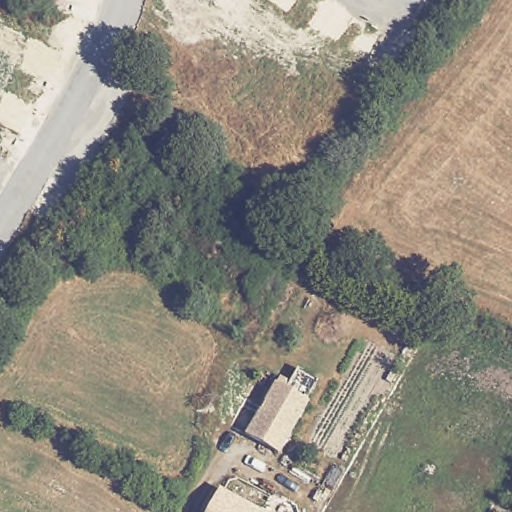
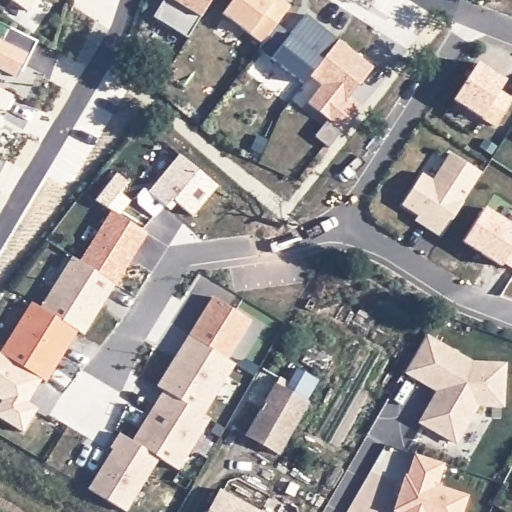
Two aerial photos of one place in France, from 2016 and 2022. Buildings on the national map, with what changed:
new [(28,11),(11,0),(35,0),(28,11)]
new [(188,38),(171,28),(165,40),(146,30),(164,0),(211,0),(188,38)]
new [(231,0),(282,0),(290,6),(277,25),(292,34),(306,14),(339,40),(311,77),(306,83),(259,47),(262,43),(222,13),(231,0)]
new [(28,59),(24,57),(14,77),(12,76),(13,75),(0,68),(0,23),(37,42),(28,59)]
unchanged [(361,106),(341,130),(309,105),(323,86),(311,77),(339,40),(374,68),(350,98),(361,106)]
new [(495,127),(482,118),(454,100),(478,64),(506,82),(499,92),(512,100),(495,127)]
new [(5,112),(0,109),(0,89),(14,97),(5,112)]
new [(423,172),(433,177),(450,151),(482,171),(440,238),(414,222),(418,215),(402,205),(423,172)]
new [(180,155),(217,187),(193,216),(173,199),(166,207),(149,192),(180,155)]
new [(73,257),(80,261),(110,209),(148,232),(84,335),(78,331),(48,314),(41,310),(73,257)]
new [(512,226),(512,249),(501,267),(464,242),(485,209),(512,226)]
new [(504,263),(512,249),(512,269),(504,263)]
new [(213,298),(251,321),(227,360),(189,336),(213,298)]
new [(32,302),(41,310),(78,331),(48,383),(41,380),(0,354),(32,302)]
new [(158,387),(176,358),(179,352),(189,336),(235,365),(204,416),(158,387)]
unchanged [(457,446),(416,423),(435,393),(404,375),(428,337),(474,361),(508,363),(506,409),(477,408),(457,446)]
new [(41,380),(28,401),(38,407),(24,433),(0,419),(0,404),(2,401),(0,399),(0,354),(12,361),(41,380)]
new [(294,367),(318,379),(306,401),(284,388),(294,367)]
unchanged [(310,403),(280,456),(247,437),(277,385),(310,403)]
new [(178,470),(132,442),(150,413),(154,407),(164,391),(210,419),(178,470)]
new [(113,450),(110,448),(119,434),(159,459),(126,512),(88,489),(113,450)]
new [(399,484),(404,486),(407,477),(409,478),(417,456),(446,466),(439,488),(470,498),(465,512),(395,512),(400,498),(395,496),(399,484)]
unchanged [(259,508),(266,512),(200,512),(215,487),(257,511),(259,508)]

